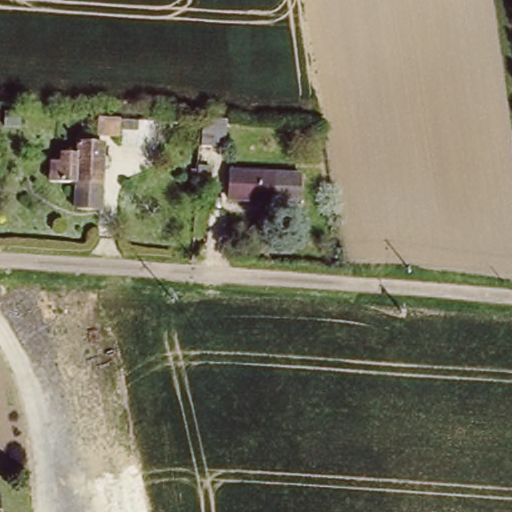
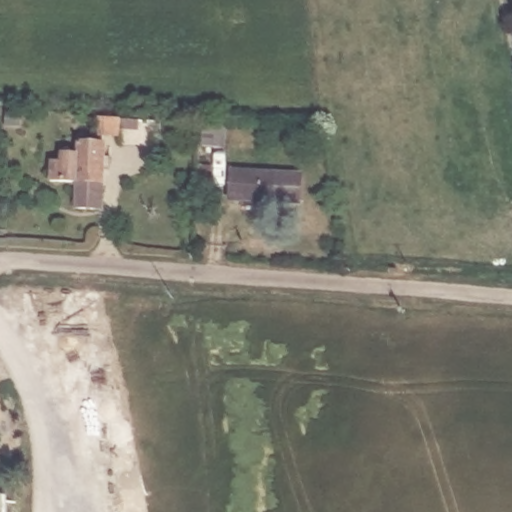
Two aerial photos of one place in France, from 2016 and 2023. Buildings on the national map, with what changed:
unchanged [(115,124),(113,139),(102,137),(103,133),(92,131),(95,121),(115,124)]
unchanged [(106,215),(81,213),(83,187),(57,185),(59,163),(70,163),(70,156),(86,156),(87,148),(111,150),(106,215)]
unchanged [(281,174),(280,203),(236,199),(237,170),(281,174)]
unchanged [(188,179),(195,180),(195,195),(187,194),(188,179)]
unchanged [(2,512),(0,512),(0,494),(1,494),(2,512)]

